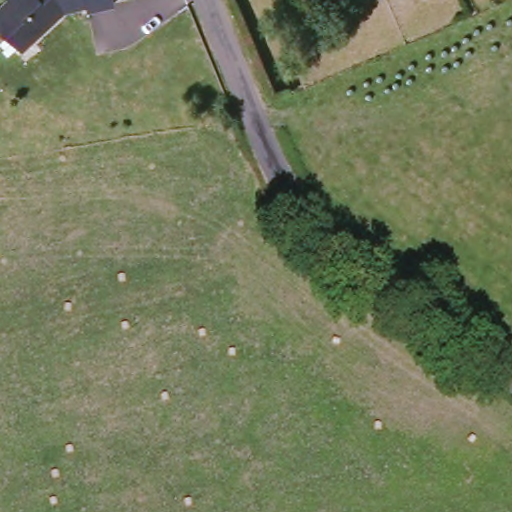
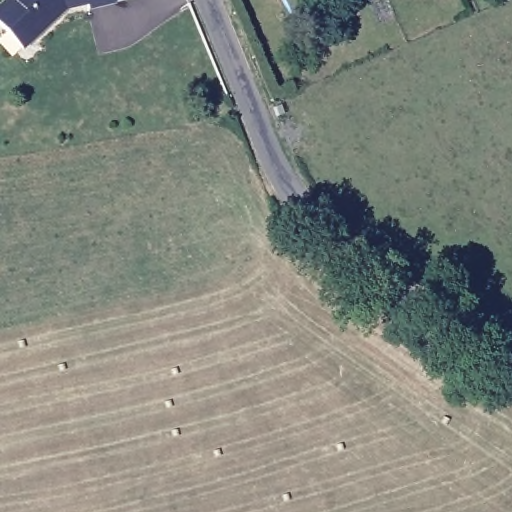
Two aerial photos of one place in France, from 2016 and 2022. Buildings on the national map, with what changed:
unchanged [(12,34),(0,22),(0,10),(10,0),(117,0),(117,3),(91,9),(90,4),(69,9),(62,16),(55,21),(35,39),(25,49),(12,34)]

